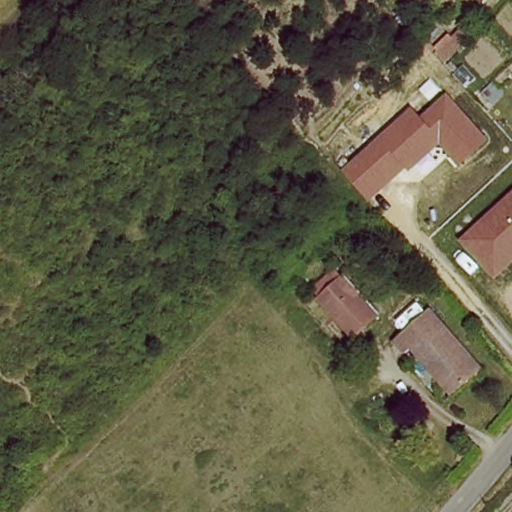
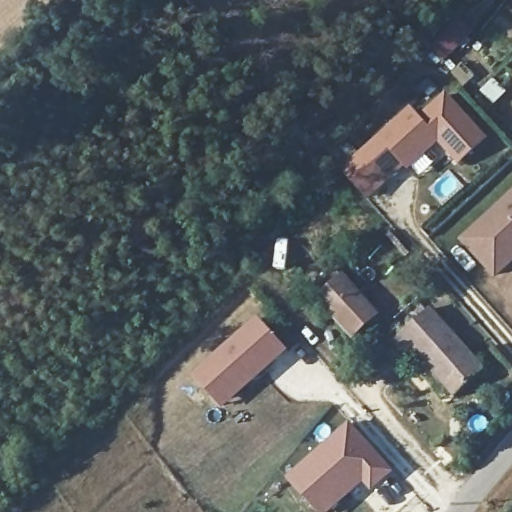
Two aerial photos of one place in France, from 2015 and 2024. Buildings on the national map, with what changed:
unchanged [(410,105),(420,116),(446,91),(490,140),(460,165),(440,144),(410,172),(407,169),(370,202),(341,170),(410,105)]
unchanged [(460,242),(512,195),(512,268),(497,281),(460,242)]
unchanged [(358,311),(373,328),(355,345),(320,305),(312,297),(338,275),(345,283),(364,306),(358,311)]
new [(254,312),(288,350),(220,407),(187,371),(254,312)]
unchanged [(491,376),(465,400),(426,358),(417,366),(403,350),(415,340),(408,330),(427,315),(434,323),(440,319),(491,376)]
new [(323,440),(324,442),(349,422),(395,470),(370,492),(363,484),(326,512),(315,512),(282,475),(323,440)]

